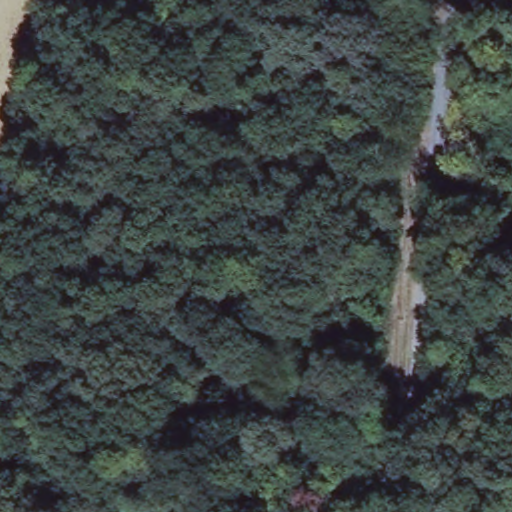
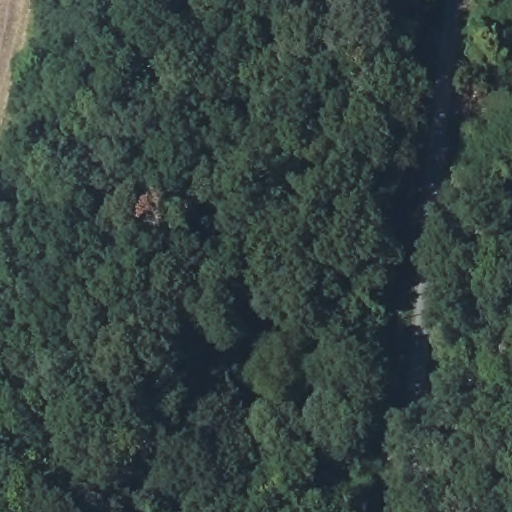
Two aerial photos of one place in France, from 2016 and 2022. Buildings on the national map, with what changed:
[]

